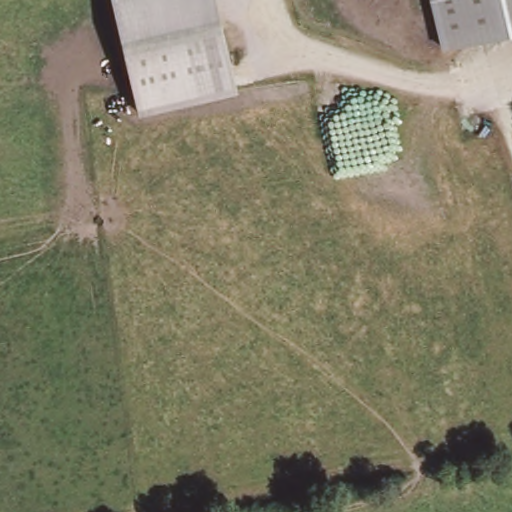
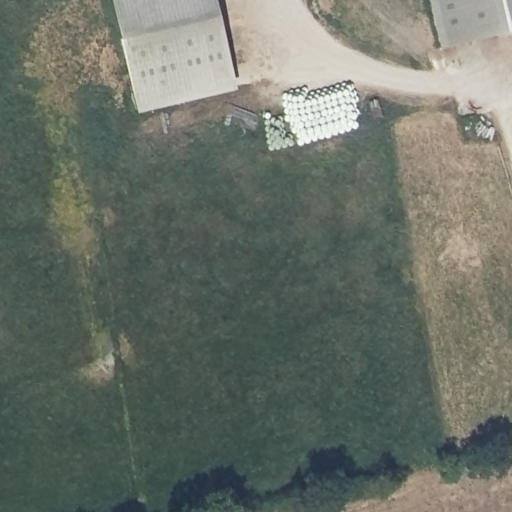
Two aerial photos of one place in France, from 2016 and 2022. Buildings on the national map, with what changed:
unchanged [(241,90),(137,114),(114,0),(218,0),(241,90)]
unchanged [(512,39),(444,53),(433,0),(512,0),(512,39)]

